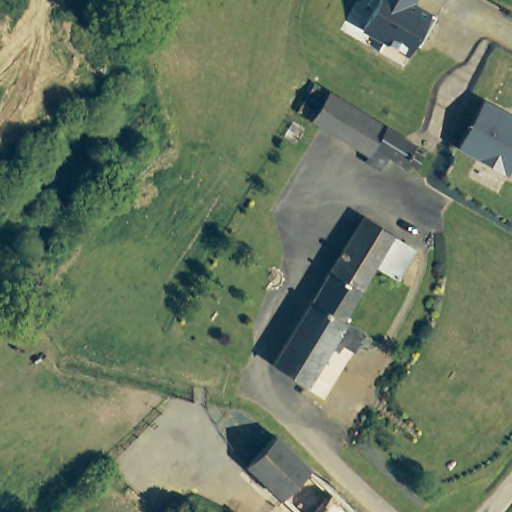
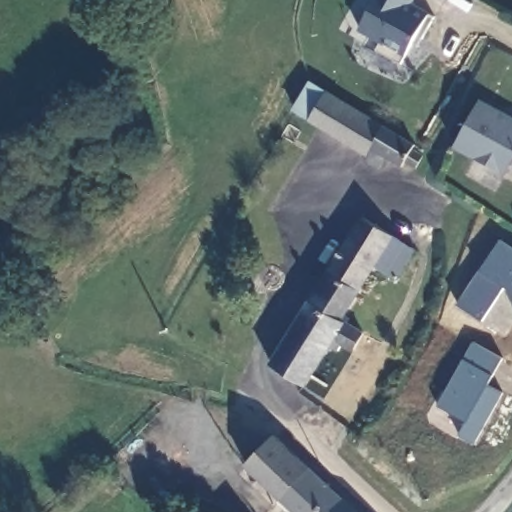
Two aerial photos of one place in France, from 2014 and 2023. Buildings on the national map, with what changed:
unchanged [(418,47),(414,44),(402,65),(376,51),(380,42),(358,30),(371,7),(366,4),(369,0),(416,0),(414,4),(430,14),(429,15),(435,17),(418,47)]
unchanged [(294,108),(311,80),(383,124),(366,152),(294,108)]
unchanged [(512,168),(507,177),(455,150),(480,104),(512,121),(512,168)]
unchanged [(424,149),(415,165),(405,159),(401,166),(385,155),(377,167),(363,158),(366,152),(383,124),(424,149)]
unchanged [(414,252),(396,282),(374,268),(341,322),(363,335),(352,352),(341,347),(338,352),(329,347),(305,388),(271,367),(362,218),(414,252)]
new [(512,251),(512,294),(504,289),(482,323),(458,307),(499,242),(512,251)]
new [(473,343),(503,360),(488,387),(502,395),(475,445),(459,436),(466,422),(438,407),(473,343)]
unchanged [(245,469),(273,438),(309,471),(281,502),(245,469)]
unchanged [(352,512),(292,512),(281,502),(309,471),(352,512)]
unchanged [(151,491),(148,499),(134,492),(138,484),(151,491)]

